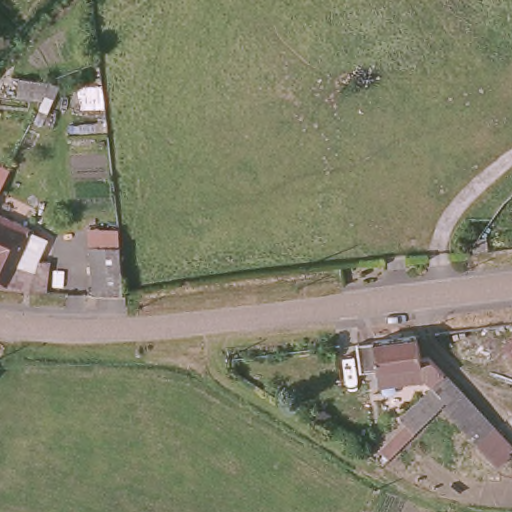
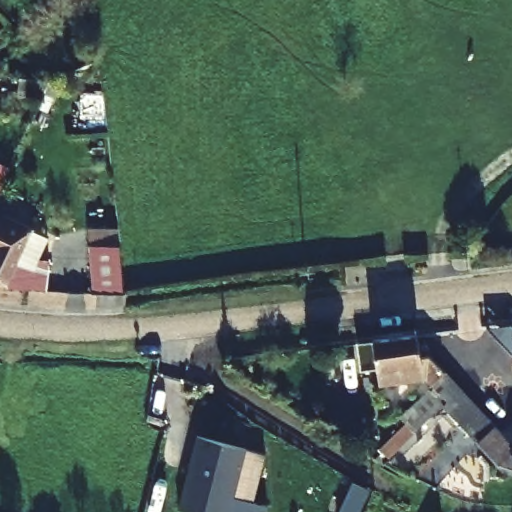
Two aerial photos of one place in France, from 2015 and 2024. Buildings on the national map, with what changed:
unchanged [(38,225),(22,258),(37,265),(40,254),(52,256),(49,286),(32,284),(0,279),(0,205),(38,225)]
unchanged [(100,285),(99,254),(112,254),(114,284),(100,285)]
unchanged [(431,374),(384,380),(380,364),(367,365),(362,338),(422,331),(426,354),(435,353),(448,366),(440,372),(435,378),(431,374)]
unchanged [(416,425),(405,412),(432,383),(445,397),(416,425)]
new [(230,512),(178,512),(195,443),(245,455),(230,512)]

